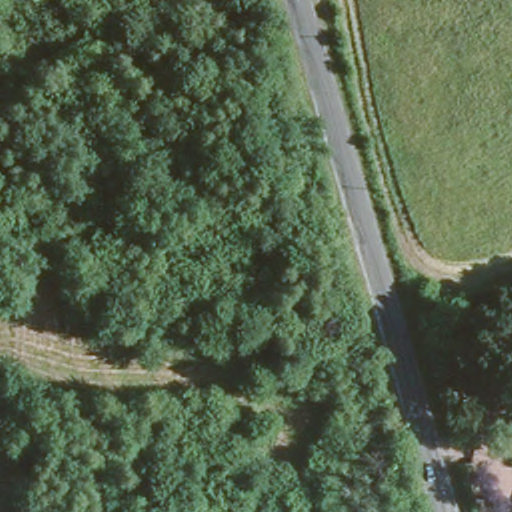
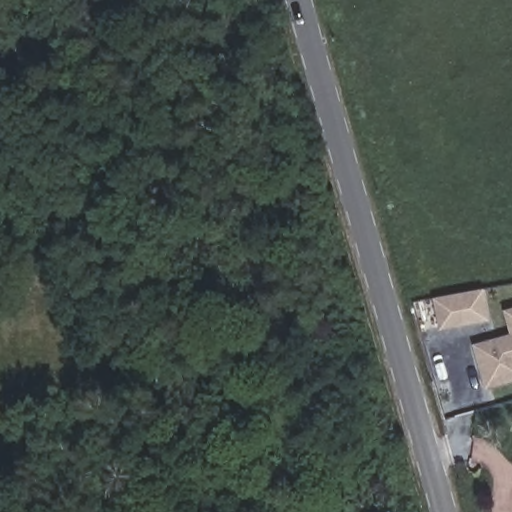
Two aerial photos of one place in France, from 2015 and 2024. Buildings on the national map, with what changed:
new [(438,330),(433,297),(484,289),(489,320),(438,330)]
new [(471,344),(509,334),(502,309),(512,306),(512,382),(485,390),(471,344)]

